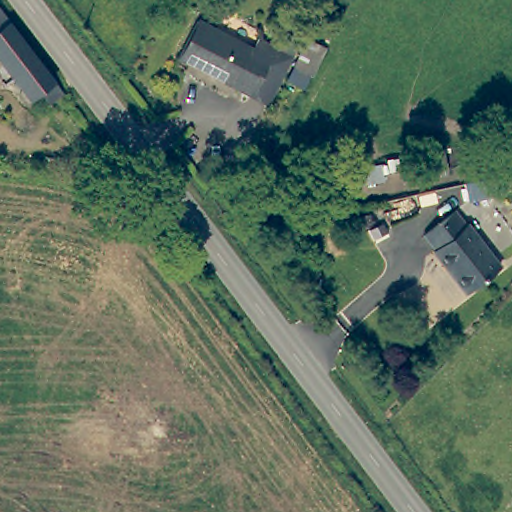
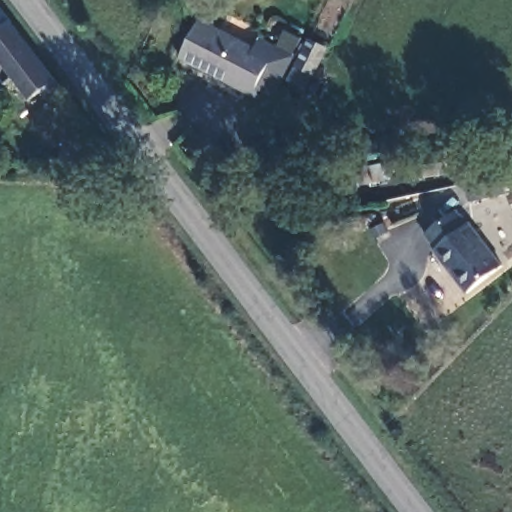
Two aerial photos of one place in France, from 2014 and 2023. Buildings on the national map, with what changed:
unchanged [(42,87),(28,95),(14,77),(5,83),(0,75),(0,7),(63,89),(50,97),(42,87)]
unchanged [(271,55),(251,92),(179,53),(199,17),(255,47),(271,55)]
unchanged [(306,35),(323,44),(308,72),(292,65),(306,35)]
unchanged [(260,37),(292,54),(268,101),(251,92),(271,55),(255,47),(260,37)]
unchanged [(468,202),(466,183),(502,176),(506,195),(468,202)]
unchanged [(454,218),(465,232),(468,230),(499,272),(464,298),(432,255),(436,252),(426,239),(454,218)]

